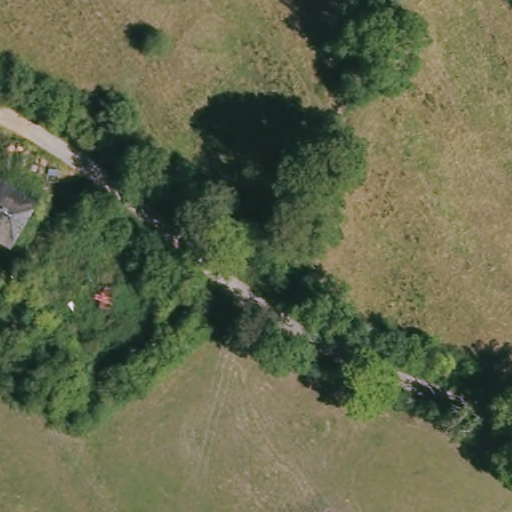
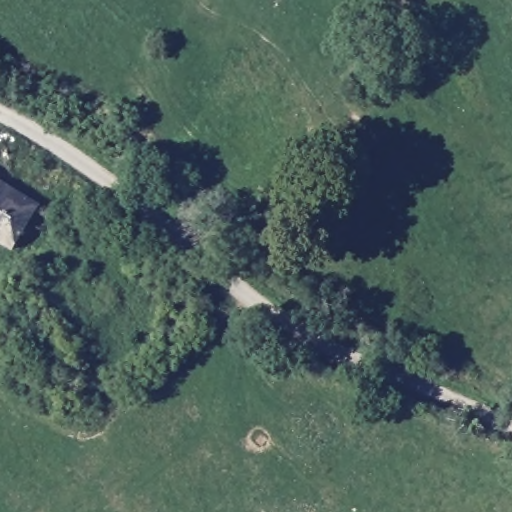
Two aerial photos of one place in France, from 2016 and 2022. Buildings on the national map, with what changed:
unchanged [(20,253),(0,241),(0,181),(44,209),(20,253)]

